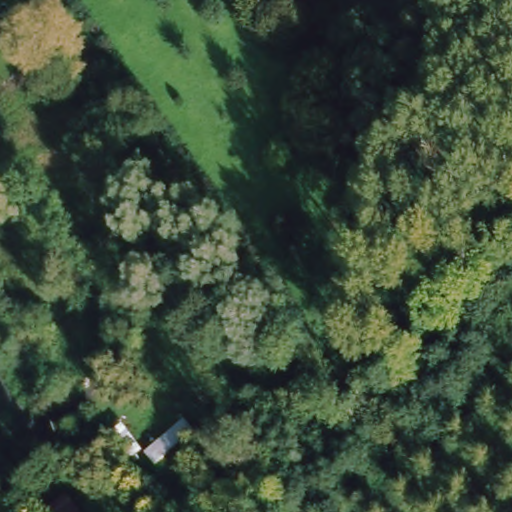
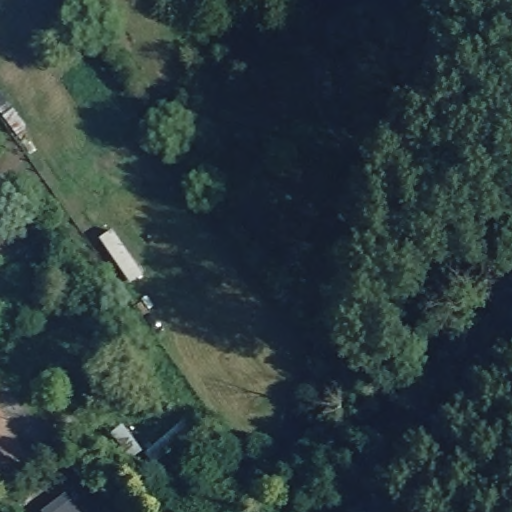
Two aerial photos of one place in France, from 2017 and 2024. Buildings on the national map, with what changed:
unchanged [(159,512),(136,512),(121,486),(136,477),(159,512)]
unchanged [(84,512),(48,512),(70,494),(84,512)]

